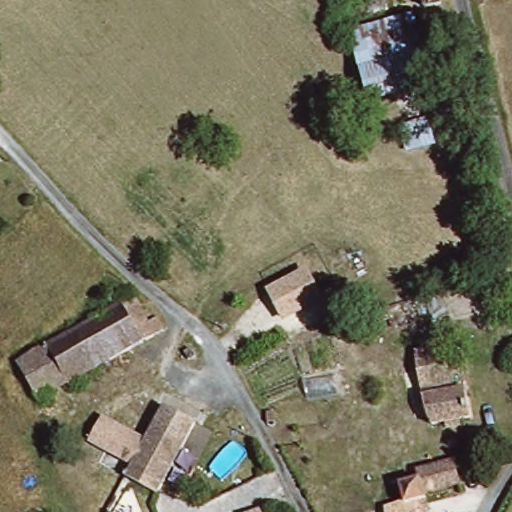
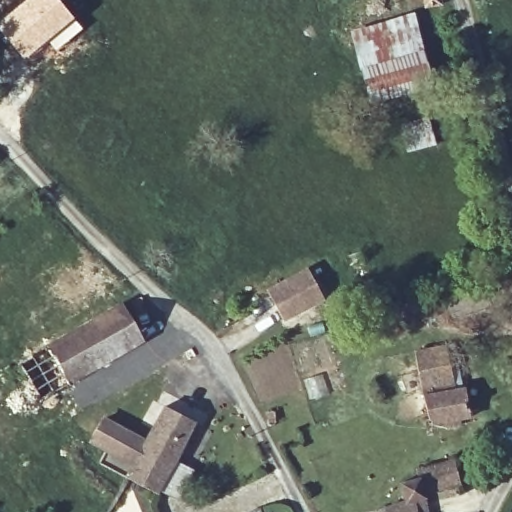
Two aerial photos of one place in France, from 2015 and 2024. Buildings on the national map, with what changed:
new [(83,28),(56,50),(48,40),(24,60),(0,32),(0,19),(23,0),(59,0),(83,28)]
unchanged [(347,0),(375,0),(374,7),(347,0)]
unchanged [(418,14),(434,87),(369,102),(354,30),(418,14)]
unchanged [(308,266),(326,301),(284,322),(266,286),(308,266)]
unchanged [(46,400),(21,353),(129,293),(145,322),(163,312),(173,329),(46,400)]
unchanged [(474,414),(437,425),(418,354),(452,345),(461,386),(468,385),(474,414)]
unchanged [(184,476),(170,470),(164,483),(132,468),(121,462),(139,429),(154,398),(165,403),(194,417),(181,448),(194,453),(184,476)]
unchanged [(121,462),(88,445),(104,415),(137,432),(121,462)]
unchanged [(404,501),(401,481),(421,476),(420,469),(433,467),(458,462),(462,485),(438,490),(425,492),(426,498),(416,500),(418,512),(388,512),(386,505),(404,501)]
unchanged [(259,512),(249,512),(257,507),(259,512)]

